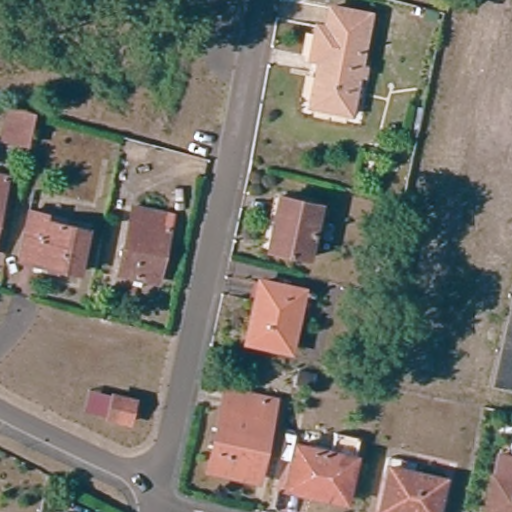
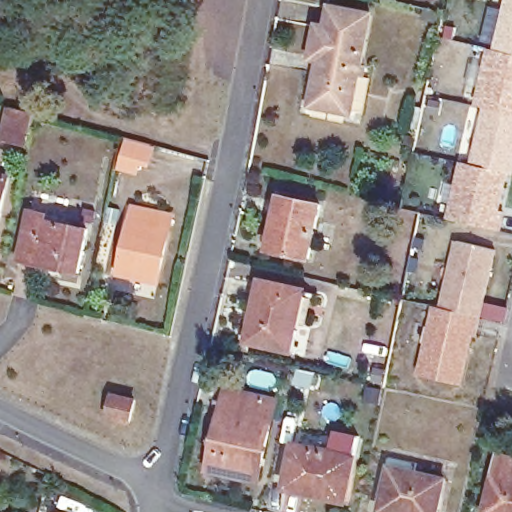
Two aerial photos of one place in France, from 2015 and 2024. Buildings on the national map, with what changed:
new [(509,172),(501,209),(506,212),(502,231),(446,219),(460,161),(469,164),(483,106),(473,104),(487,47),(491,49),(493,44),(482,40),(491,6),(502,9),(505,0),(512,0),(512,174),(509,172)]
unchanged [(365,59),(371,61),(370,70),(363,70),(355,109),(317,100),(326,54),(317,52),(324,20),(329,21),(333,1),(340,2),(376,12),(365,59)]
unchanged [(29,141),(4,136),(8,111),(34,115),(29,141)]
new [(123,142),(148,147),(145,161),(132,159),(129,172),(117,170),(123,142)]
unchanged [(0,200),(0,169),(5,171),(0,200)]
unchanged [(322,194),(311,248),(270,240),(276,215),(282,216),(288,187),(322,194)]
unchanged [(52,207),(51,215),(89,224),(80,266),(22,253),(31,203),(52,207)]
unchanged [(171,213),(159,275),(122,267),(137,206),(171,213)]
new [(416,375),(432,307),(438,307),(454,242),(497,251),(485,302),(509,308),(506,322),(481,317),(477,337),(474,337),(462,386),(416,375)]
unchanged [(309,286),(295,342),(255,334),(268,277),(309,286)]
unchanged [(265,401),(261,421),(270,422),(257,481),(209,471),(214,452),(219,453),(224,432),(219,431),(227,392),(265,401)]
unchanged [(140,404),(132,423),(113,417),(121,397),(140,404)]
unchanged [(324,492),(288,483),(298,442),(330,450),(335,430),(358,436),(354,456),(350,472),(344,496),(324,492)]
unchanged [(445,477),(438,512),(415,512),(383,505),(393,464),(445,477)]
unchanged [(489,510),(497,474),(502,475),(504,466),(512,467),(512,512),(498,512),(489,510)]

